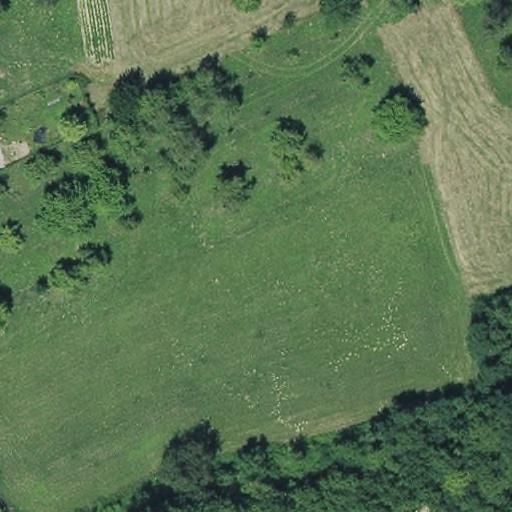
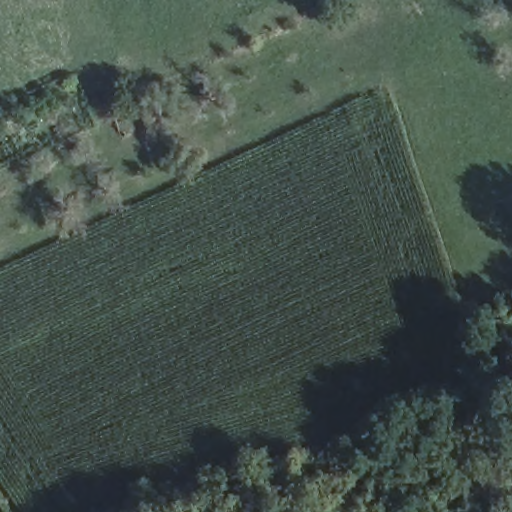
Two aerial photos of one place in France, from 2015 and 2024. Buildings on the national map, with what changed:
[]

